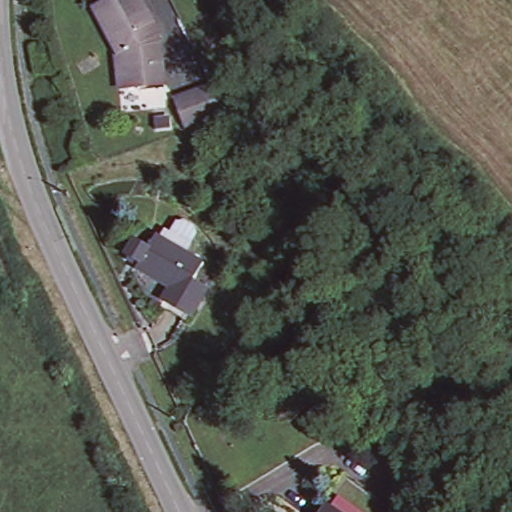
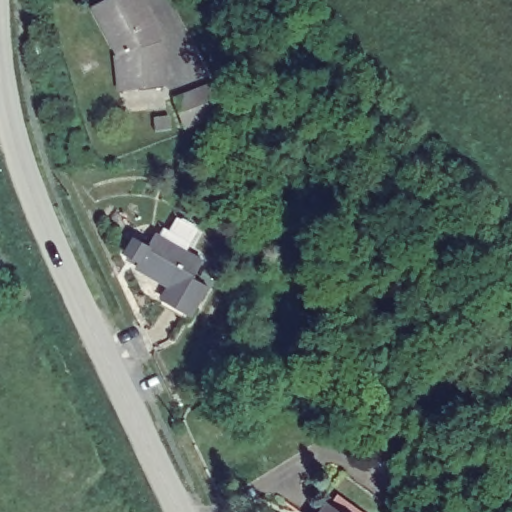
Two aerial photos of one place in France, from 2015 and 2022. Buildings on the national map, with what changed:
unchanged [(117,57),(123,54),(98,5),(109,0),(146,0),(157,21),(152,24),(163,46),(168,81),(131,87),(122,88),(117,57)]
unchanged [(196,113),(170,120),(160,95),(197,80),(207,100),(196,113)]
unchanged [(151,111),(153,122),(137,124),(135,113),(151,111)]
unchanged [(193,279),(208,287),(192,314),(167,300),(173,292),(142,272),(145,268),(133,261),(142,247),(152,253),(160,239),(163,241),(166,236),(171,239),(176,231),(185,226),(193,231),(193,242),(185,254),(202,265),(193,279)]
unchanged [(330,512),(323,512),(325,508),(330,512)]

